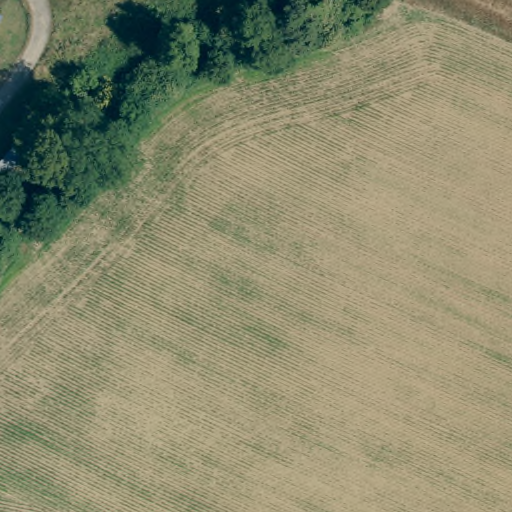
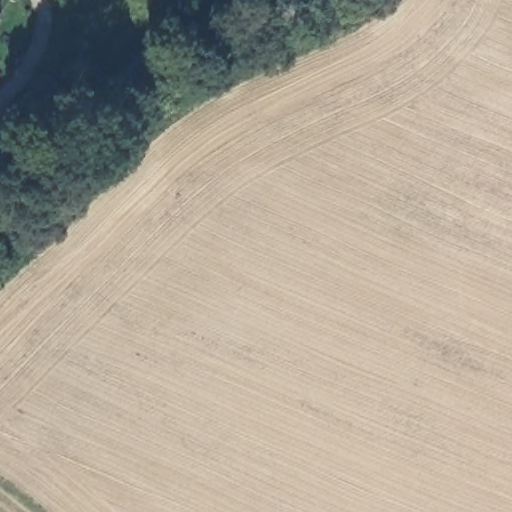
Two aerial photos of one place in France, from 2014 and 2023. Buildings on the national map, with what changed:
unchanged [(13,145),(31,160),(9,182),(0,174),(0,159),(13,145)]

